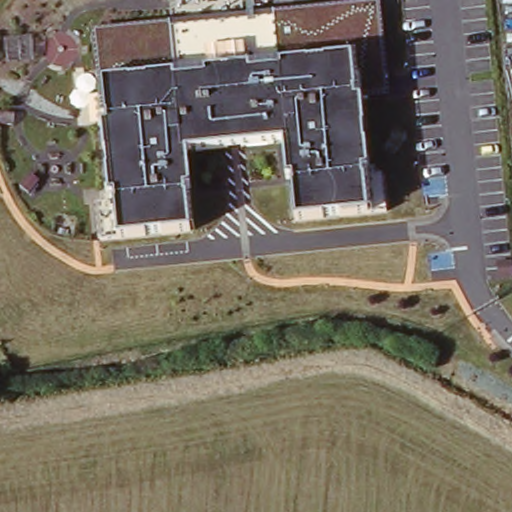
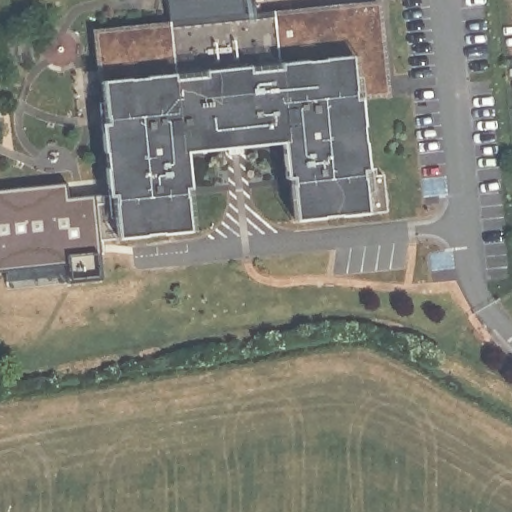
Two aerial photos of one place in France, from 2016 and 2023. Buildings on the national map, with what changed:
unchanged [(381,1),(391,103),(360,103),(372,216),(291,222),(283,147),(185,156),(192,240),(112,248),(98,28),(381,1)]
new [(66,198),(96,195),(100,274),(67,277),(67,263),(0,268),(0,190),(64,183),(66,198)]

